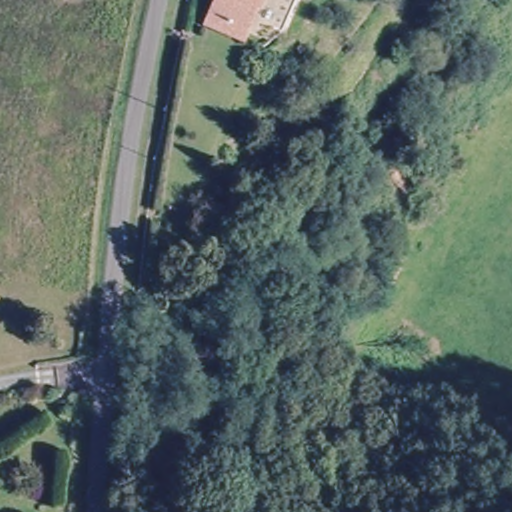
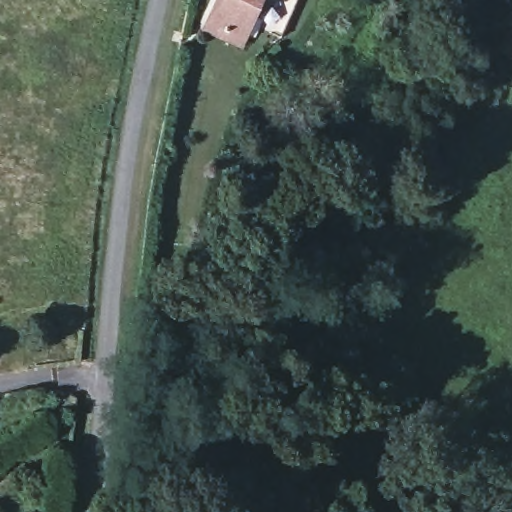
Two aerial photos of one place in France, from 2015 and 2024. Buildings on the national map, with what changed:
unchanged [(206,28),(216,0),(255,0),(240,41),(206,28)]

